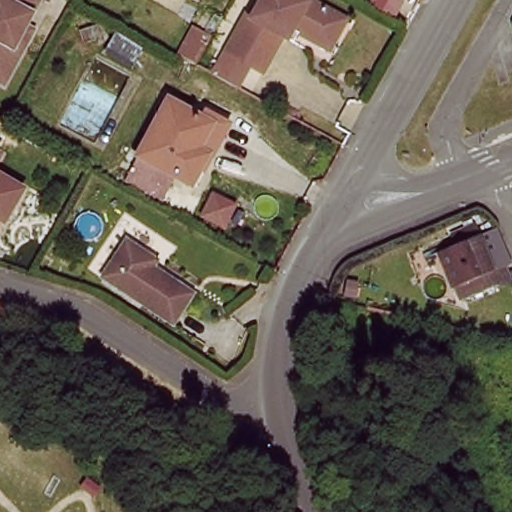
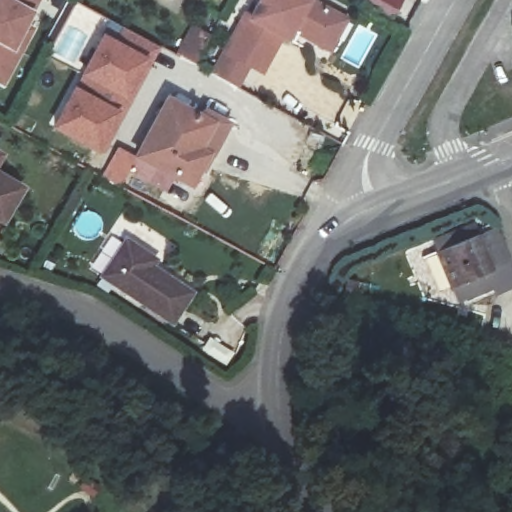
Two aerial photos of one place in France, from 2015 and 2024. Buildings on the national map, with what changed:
unchanged [(33,30),(21,52),(3,42),(0,47),(0,0),(39,0),(25,26),(33,30)]
unchanged [(224,54),(244,18),(249,21),(261,0),(295,0),(304,5),(306,2),(334,18),(343,24),(326,53),(317,48),(296,36),(291,45),(285,41),(280,39),(260,75),(248,68),(236,88),(213,76),(212,75),(224,54)]
new [(404,0),(393,21),(355,0),(404,0)]
new [(158,46),(101,157),(40,126),(65,81),(72,84),(76,76),(69,71),(94,30),(112,39),(118,25),(158,46)]
unchanged [(133,161),(163,106),(191,121),(195,115),(218,126),(184,189),(133,161)]
unchanged [(0,161),(0,159),(1,160),(0,161)]
unchanged [(0,179),(23,194),(11,214),(3,226),(0,224),(0,179)]
demolished [(198,213),(211,192),(242,207),(229,232),(198,213)]
unchanged [(440,258),(487,238),(503,275),(493,280),(498,290),(471,301),(466,292),(455,296),(440,258)]
unchanged [(154,259),(150,266),(189,292),(168,322),(107,281),(98,275),(106,263),(122,239),(154,259)]

